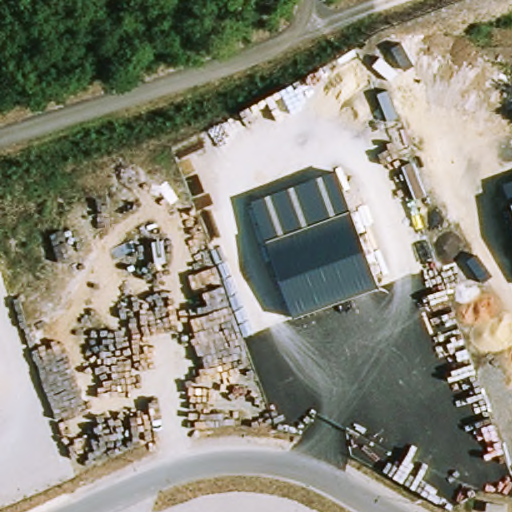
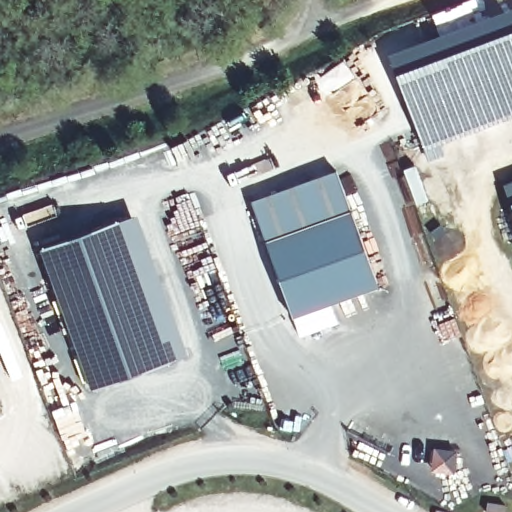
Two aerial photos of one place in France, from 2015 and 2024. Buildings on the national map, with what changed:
new [(512,27),(512,111),(422,142),(396,67),(512,27)]
unchanged [(337,169),(380,284),(293,316),(252,200),(337,169)]
unchanged [(510,199),(512,199),(512,206),(510,199)]
new [(90,388),(40,248),(137,213),(187,354),(90,388)]

